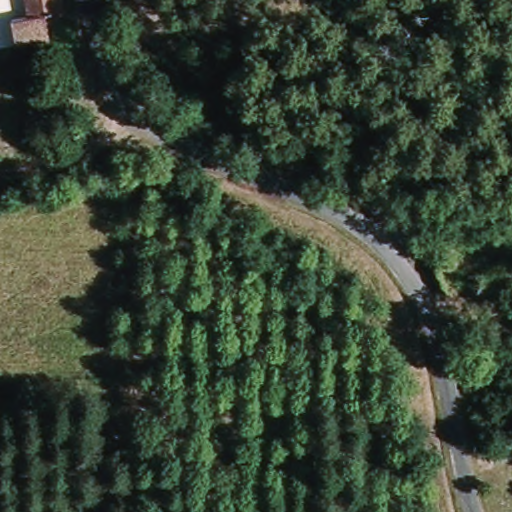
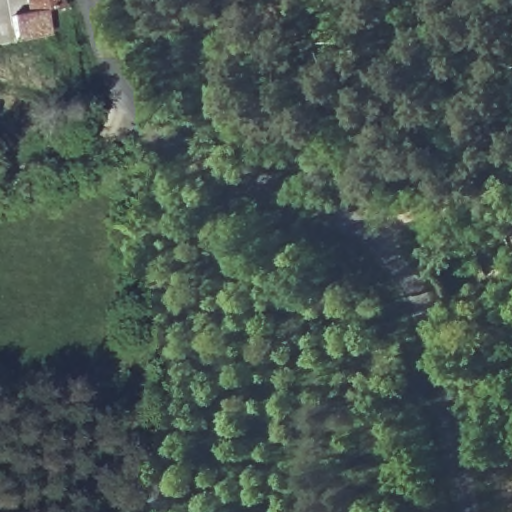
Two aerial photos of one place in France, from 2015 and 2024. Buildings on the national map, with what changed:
unchanged [(58,0),(61,12),(49,14),(54,34),(20,41),(16,18),(31,16),(27,0),(58,0)]

